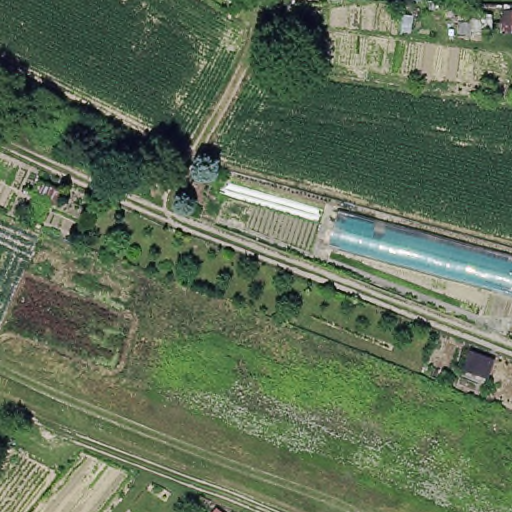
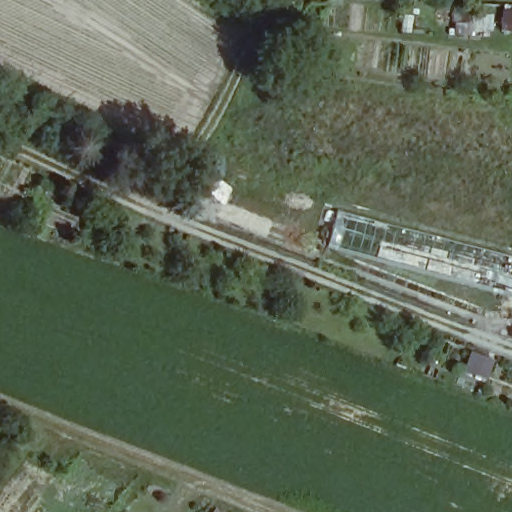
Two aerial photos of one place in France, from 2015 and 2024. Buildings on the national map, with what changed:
unchanged [(512,258),(512,297),(329,248),(338,211),(512,258)]
unchanged [(218,512),(214,512),(215,510),(218,512)]

